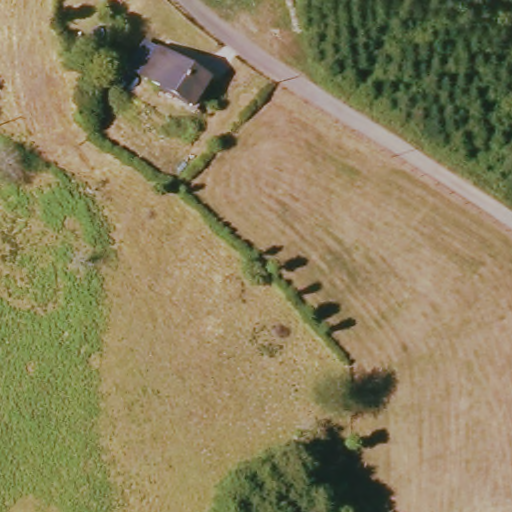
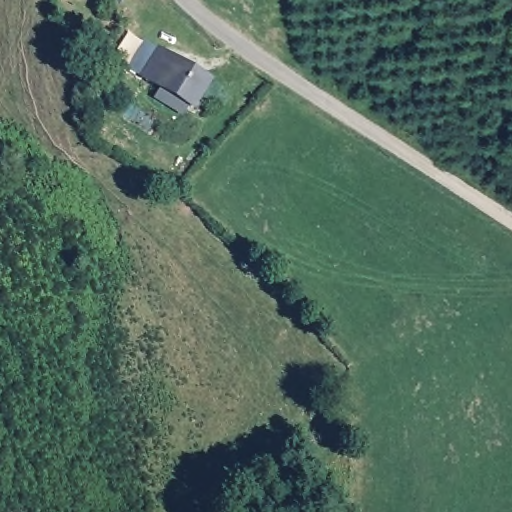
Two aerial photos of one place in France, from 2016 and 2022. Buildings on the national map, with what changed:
unchanged [(192,109),(144,75),(132,66),(149,41),(162,51),(209,84),(192,109)]

